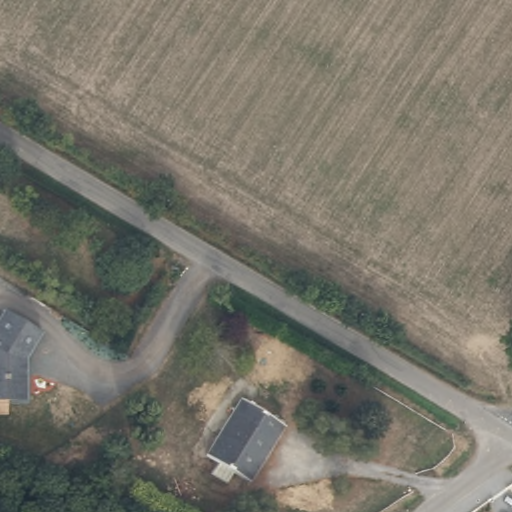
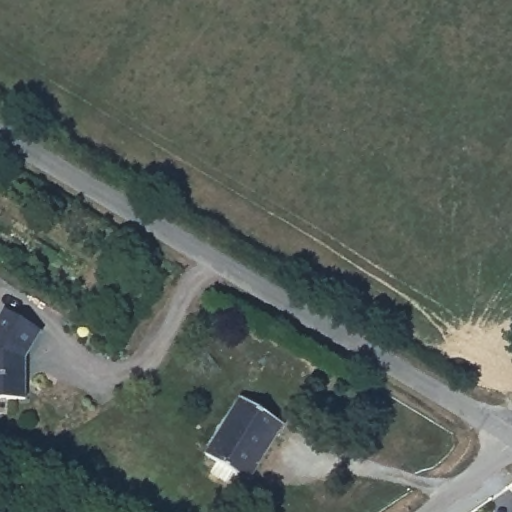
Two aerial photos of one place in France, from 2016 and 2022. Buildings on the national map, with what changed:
unchanged [(26,397),(0,397),(0,316),(5,308),(41,329),(25,356),(26,363),(26,374),(26,397)]
unchanged [(232,480),(225,492),(207,481),(214,469),(201,461),(244,397),(287,424),(246,489),(232,480)]

